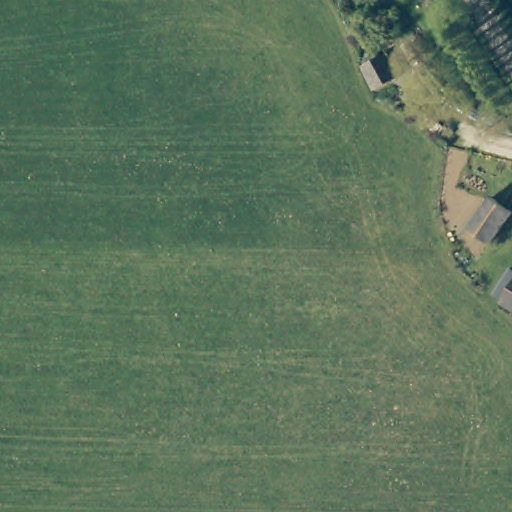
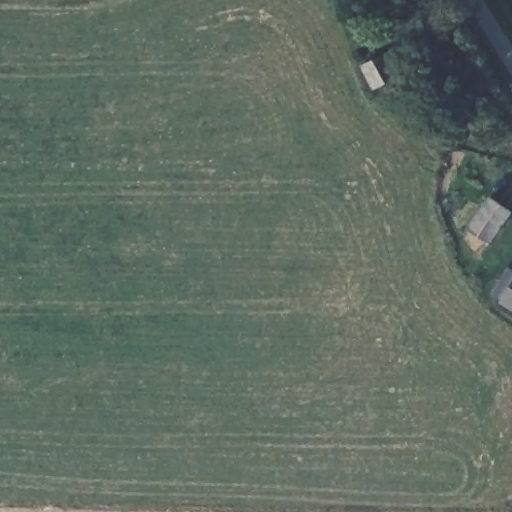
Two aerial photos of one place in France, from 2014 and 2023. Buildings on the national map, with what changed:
unchanged [(361,66),(366,49),(375,51),(378,55),(383,53),(396,76),(374,90),(361,66)]
unchanged [(489,242),(468,227),(490,196),(512,211),(489,242)]
unchanged [(500,300),(512,281),(512,307),(500,300)]

